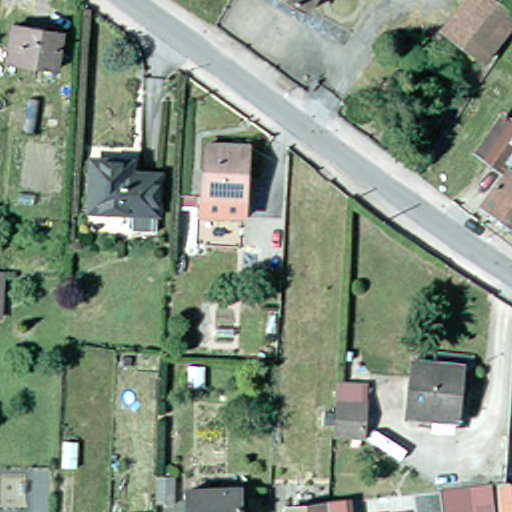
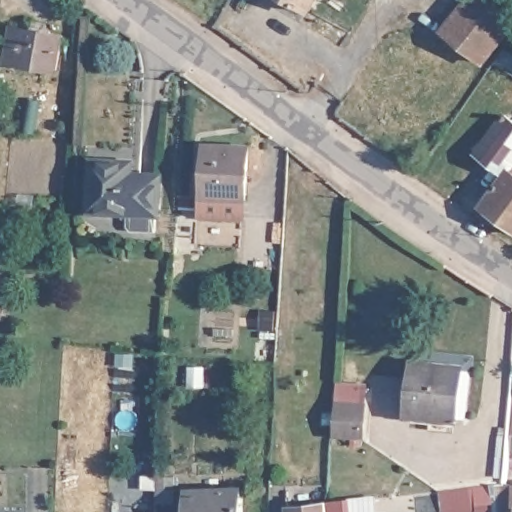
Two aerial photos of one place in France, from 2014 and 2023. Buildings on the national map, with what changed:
unchanged [(291,0),(314,0),(309,10),(291,0)]
unchanged [(460,0),(492,0),(512,15),(481,55),(441,25),(460,0)]
unchanged [(59,29),(53,62),(4,54),(10,20),(59,29)]
unchanged [(499,169),(470,149),(497,110),(512,120),(512,227),(476,200),(499,169)]
unchanged [(242,201),(200,198),(201,178),(205,126),(247,130),(243,181),(242,201)]
unchanged [(130,222),(126,218),(127,203),(89,201),(91,152),(128,155),(128,165),(156,167),(153,224),(130,222)]
unchanged [(10,270),(6,318),(0,318),(0,270),(10,270)]
unchanged [(454,363),(448,416),(403,410),(409,357),(454,363)]
unchanged [(208,391),(194,390),(195,371),(209,371),(208,391)]
unchanged [(340,384),(366,386),(365,402),(368,402),(365,441),(336,440),(339,400),(340,384)]
unchanged [(83,445),(81,470),(67,470),(68,445),(83,445)]
unchanged [(177,507),(160,507),(161,480),(179,480),(177,507)]
unchanged [(495,481),(502,480),(506,480),(512,483),(512,512),(497,512),(495,481)]
unchanged [(413,512),(404,512),(402,492),(439,488),(491,481),(493,509),(472,512),(422,512),(422,511),(413,512)]
unchanged [(240,488),(241,512),(185,512),(185,488),(240,488)]
unchanged [(328,500),(347,498),(348,512),(324,512),(324,502),(328,501),(328,500)]
unchanged [(285,505),(324,502),(324,512),(286,512),(285,505)]

